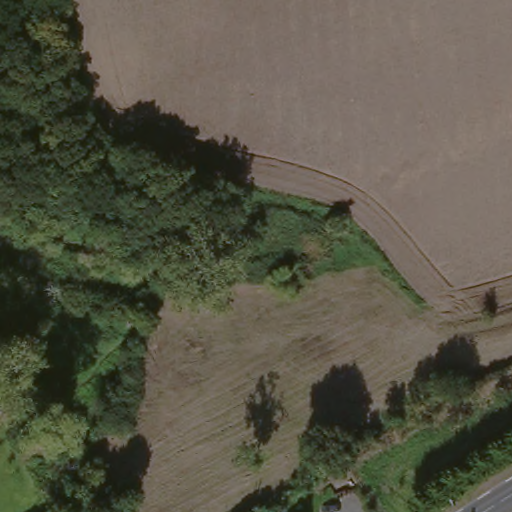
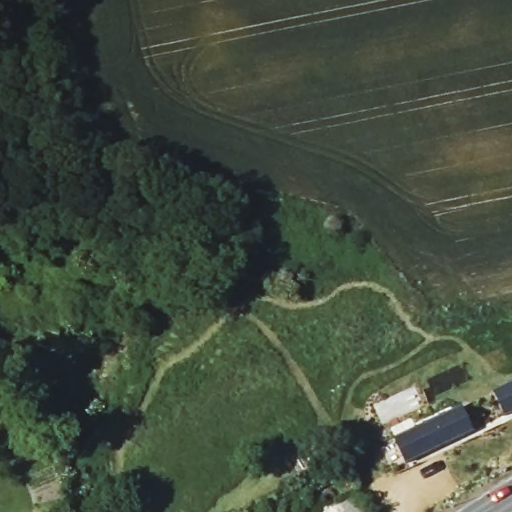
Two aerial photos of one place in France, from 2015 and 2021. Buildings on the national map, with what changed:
new [(509,384),(512,389),(512,411),(506,414),(494,391),(509,384)]
new [(462,406),(474,430),(408,465),(396,441),(462,406)]

